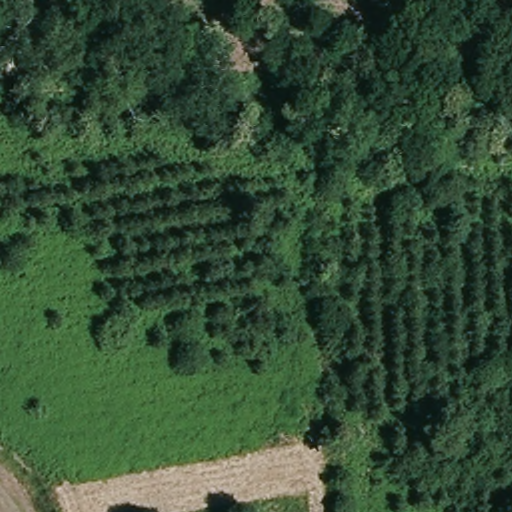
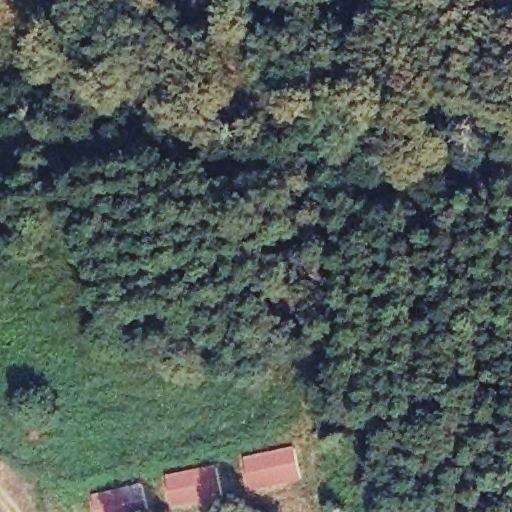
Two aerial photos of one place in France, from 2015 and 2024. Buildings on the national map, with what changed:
new [(291,445),(299,479),(250,490),(242,456),(291,445)]
new [(171,508),(165,475),(214,465),(220,498),(171,508)]
new [(91,495),(139,482),(146,512),(94,512),(94,510),(91,495)]

